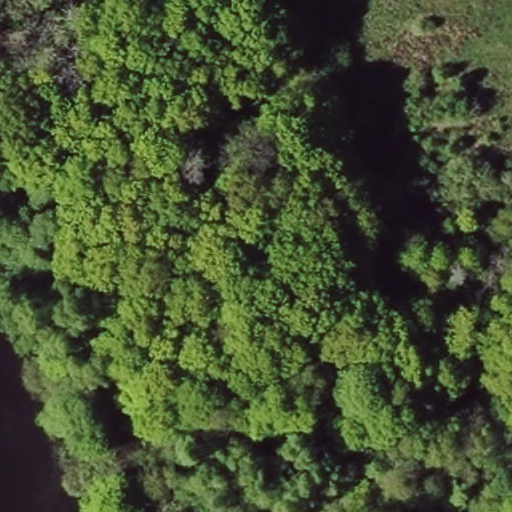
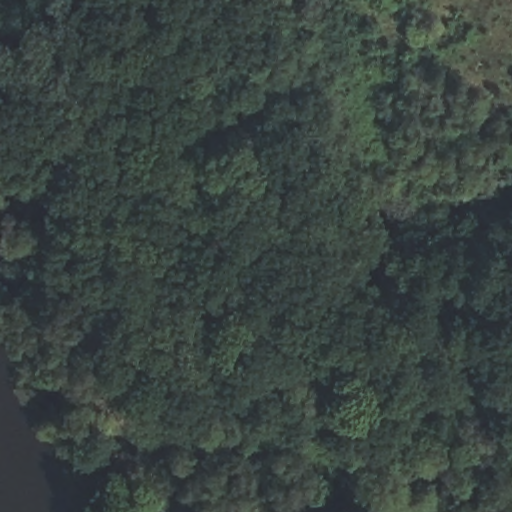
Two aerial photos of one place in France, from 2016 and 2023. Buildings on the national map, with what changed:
[]

